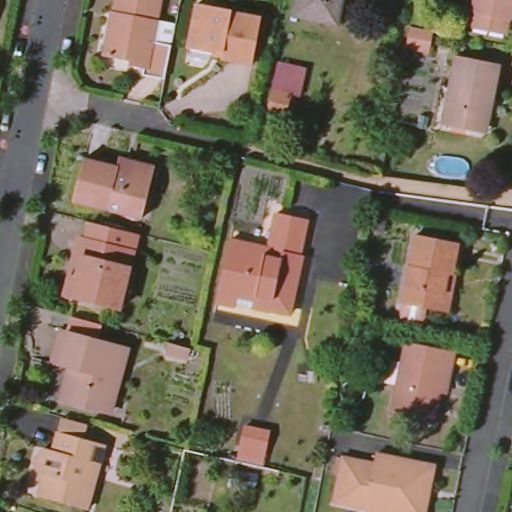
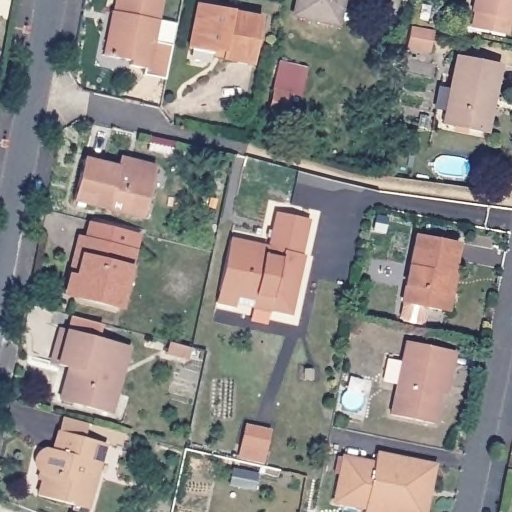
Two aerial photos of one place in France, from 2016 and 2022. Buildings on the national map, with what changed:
unchanged [(159,75),(136,71),(138,64),(121,60),(121,55),(100,51),(110,7),(106,6),(108,0),(152,0),(144,37),(166,41),(159,75)]
unchanged [(293,15),(296,0),(340,0),(336,24),(293,15)]
unchanged [(512,14),(511,15),(509,15),(507,23),(507,25),(470,17),(470,16),(472,7),(471,6),(472,0),(512,0),(512,14)]
unchanged [(221,60),(223,54),(213,53),(213,55),(188,50),(198,4),(231,11),(231,14),(261,20),(251,66),(221,60)]
unchanged [(436,36),(433,50),(411,46),(414,31),(436,36)]
unchanged [(438,124),(446,86),(456,88),(463,56),(504,64),(498,98),(492,97),(484,132),(438,124)]
unchanged [(274,98),(278,76),(294,80),(289,102),(274,98)]
unchanged [(72,200),(83,159),(116,166),(118,161),(128,163),(129,161),(155,167),(141,218),(72,200)]
unchanged [(259,300),(240,296),(238,306),(219,303),(233,239),(271,247),(273,239),(269,237),(271,230),(275,231),(279,214),(310,220),(302,254),(305,255),(293,315),(274,311),(257,309),(259,300)]
unchanged [(61,281),(66,262),(71,241),(79,243),(83,227),(132,239),(112,314),(63,301),(57,299),(61,281)]
unchanged [(446,309),(439,307),(402,301),(416,231),(456,239),(451,271),(453,271),(446,309)]
unchanged [(118,394),(113,393),(108,413),(63,400),(68,380),(73,378),(75,370),(53,363),(63,329),(71,331),(74,317),(105,325),(101,340),(131,348),(118,394)]
unchanged [(186,347),(183,357),(164,352),(166,342),(186,347)]
unchanged [(389,418),(404,345),(454,354),(450,371),(446,396),(438,395),(431,426),(389,418)]
unchanged [(43,475),(39,473),(38,469),(37,464),(38,459),(40,455),(43,452),(46,450),(54,450),(59,432),(63,418),(98,427),(93,441),(107,445),(90,511),(41,497),(44,484),(40,483),(43,475)]
unchanged [(240,451),(244,430),(268,435),(264,455),(240,451)]
unchanged [(363,504),(332,498),(342,454),(373,460),(375,450),(432,463),(421,512),(367,512),(362,511),(363,504)]

